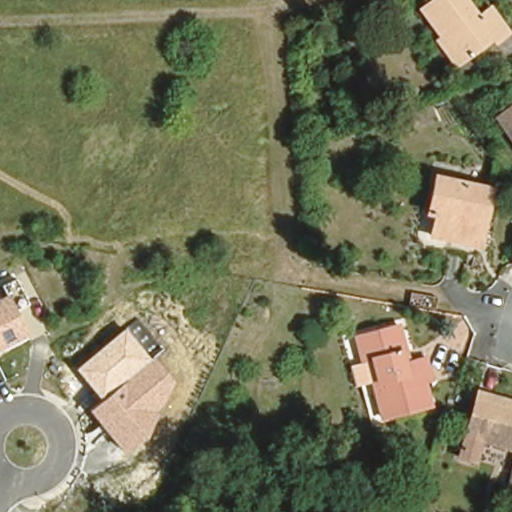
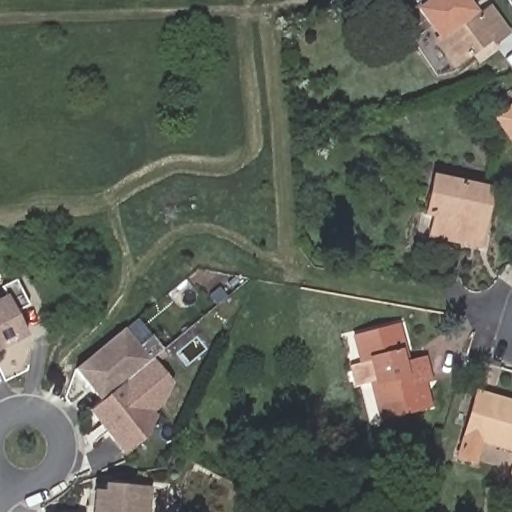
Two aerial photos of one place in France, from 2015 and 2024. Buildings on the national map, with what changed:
unchanged [(440,36),(445,32),(423,2),(426,0),(471,0),(477,9),(488,1),(508,26),(464,58),(458,62),(440,36)]
unchanged [(497,121),(512,111),(512,141),(497,121)]
unchanged [(464,235),(428,225),(432,212),(428,211),(435,192),(426,190),(432,169),(479,182),(488,185),(485,199),(480,213),(473,238),(464,235)]
unchanged [(0,300),(10,294),(30,339),(0,353),(0,300)]
unchanged [(380,383),(360,387),(356,366),(368,364),(362,338),(395,331),(405,329),(407,339),(411,355),(430,351),(438,380),(432,382),(438,407),(388,418),(380,383)]
unchanged [(126,330),(150,361),(100,401),(76,369),(126,330)]
unchanged [(100,401),(150,361),(154,358),(175,383),(156,411),(148,441),(124,456),(90,409),(100,401)]
unchanged [(490,440),(483,463),(464,456),(471,433),(485,391),(512,400),(512,448),(490,440)]
new [(102,490),(102,484),(151,486),(149,512),(92,512),(94,490),(102,490)]

